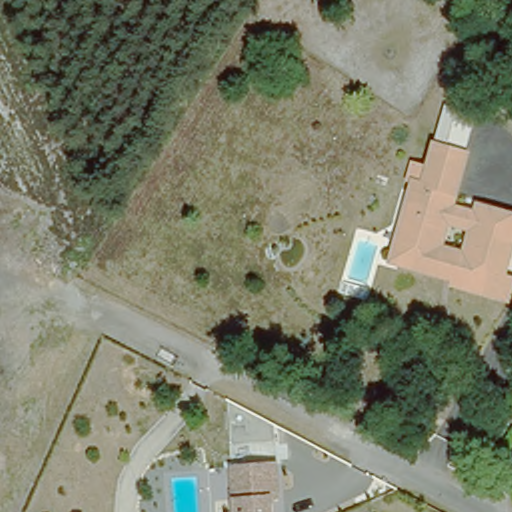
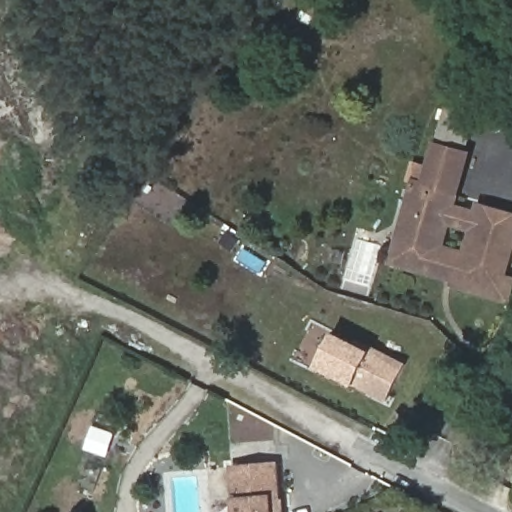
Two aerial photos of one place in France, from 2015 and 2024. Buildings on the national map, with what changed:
unchanged [(413,184),(417,169),(432,172),(438,148),(471,157),(455,212),(481,217),(483,211),(504,215),(512,217),(512,267),(512,268),(508,281),(512,282),(512,301),(511,305),(492,299),(456,288),(460,276),(448,273),(447,281),(402,268),(395,267),(403,237),(417,185),(413,184)]
new [(375,347),(406,363),(386,402),(317,367),(335,332),(373,351),(375,347)]
unchanged [(273,458),(277,491),(271,492),(273,512),(234,512),(229,465),(273,458)]

